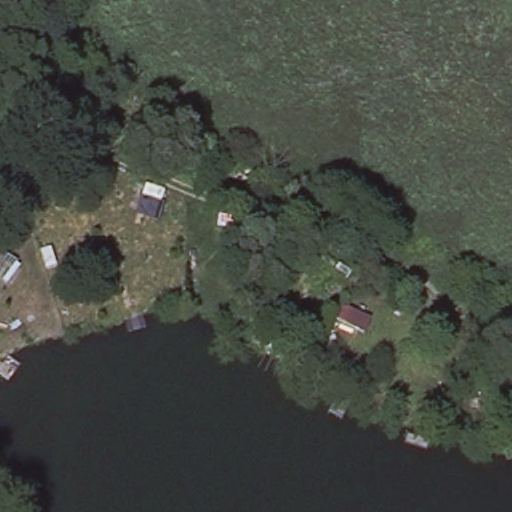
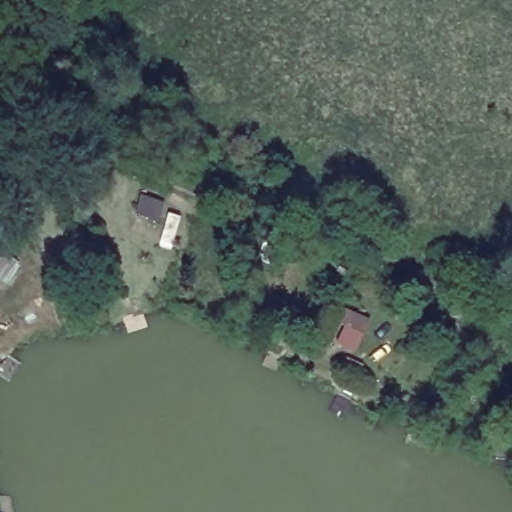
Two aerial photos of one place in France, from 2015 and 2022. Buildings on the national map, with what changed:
unchanged [(125,242),(125,262),(105,262),(104,243),(125,242)]

